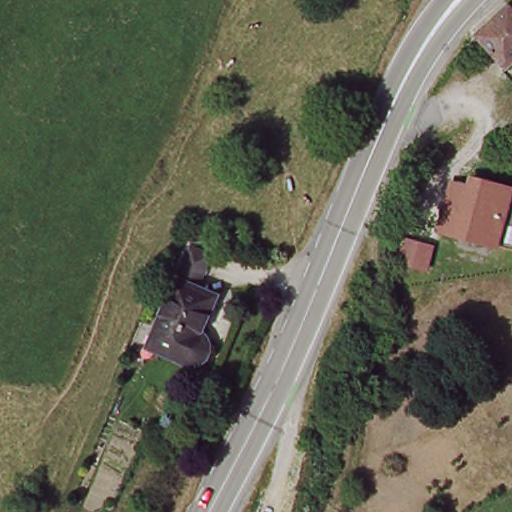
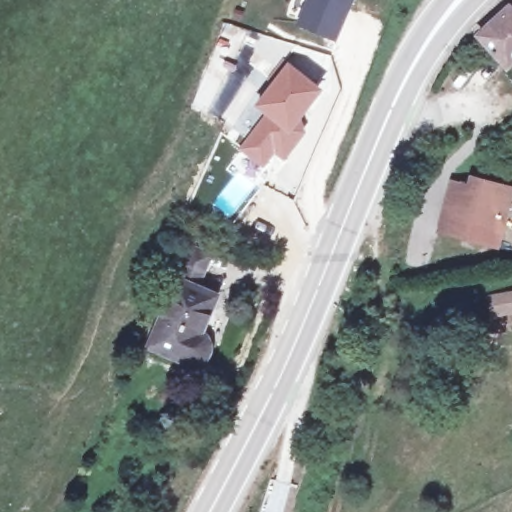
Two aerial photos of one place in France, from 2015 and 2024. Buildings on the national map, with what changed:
new [(304,0),(355,0),(337,41),(295,24),(304,0)]
unchanged [(512,9),(512,58),(505,65),(477,39),(510,6),(512,9)]
new [(287,60),(325,90),(300,121),(290,132),(262,114),(252,105),(287,60)]
new [(262,114),(290,132),(300,121),(309,130),(285,162),(275,155),(263,169),(237,148),(262,114)]
unchanged [(499,249),(437,232),(452,180),(467,185),(469,176),(512,187),(512,198),(499,249)]
unchanged [(190,342),(207,350),(212,352),(217,356),(218,360),(219,363),(218,368),(217,372),(213,376),(207,378),(202,380),(142,355),(168,290),(182,255),(205,265),(191,300),(205,305),(190,342)]

